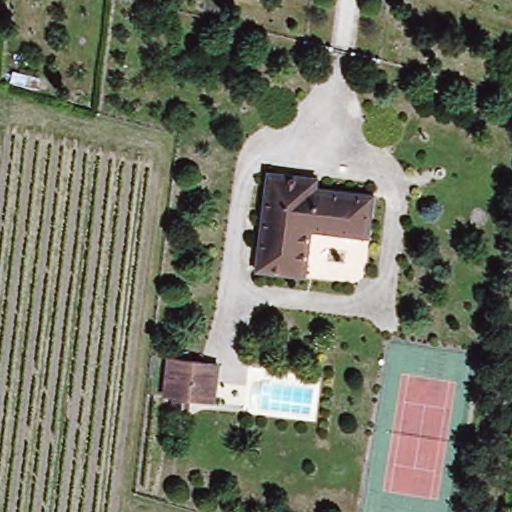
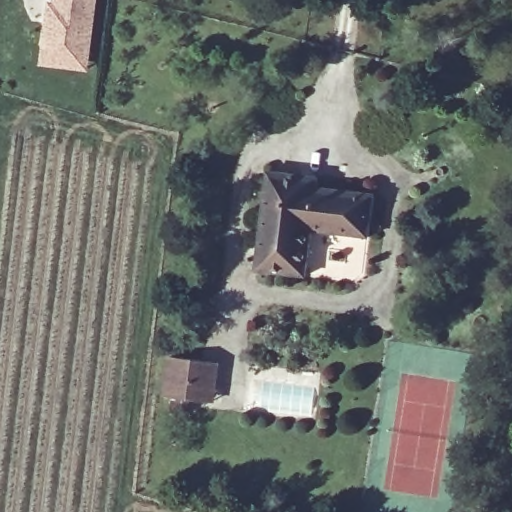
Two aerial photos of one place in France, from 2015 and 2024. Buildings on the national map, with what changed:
new [(54,16),(56,0),(97,0),(89,53),(87,68),(42,62),(45,48),(49,15),(54,16)]
unchanged [(317,179),(316,187),(373,194),(367,237),(311,230),(305,275),(255,269),(267,174),(317,179)]
unchanged [(198,398),(166,394),(171,351),(204,354),(220,356),(215,399),(198,398)]

